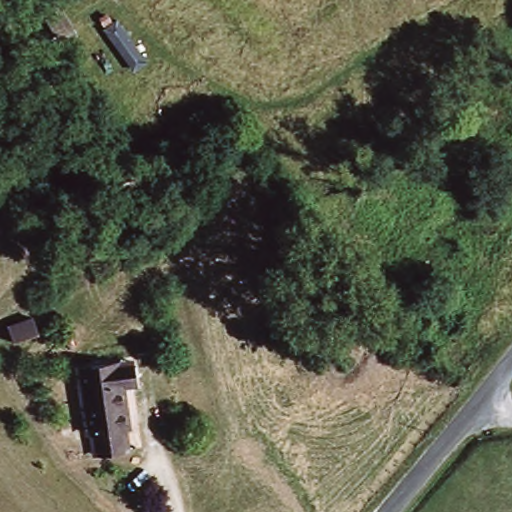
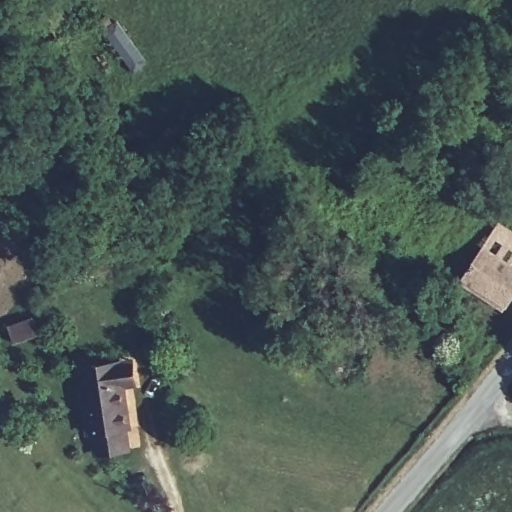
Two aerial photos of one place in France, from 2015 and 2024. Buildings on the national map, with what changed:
new [(512,301),(504,313),(457,283),(481,246),(512,266),(512,301)]
unchanged [(12,326),(36,317),(43,335),(17,343),(12,326)]
unchanged [(123,423),(126,448),(92,451),(89,426),(83,427),(76,361),(122,356),(133,355),(136,382),(125,382),(129,423),(123,423)]

